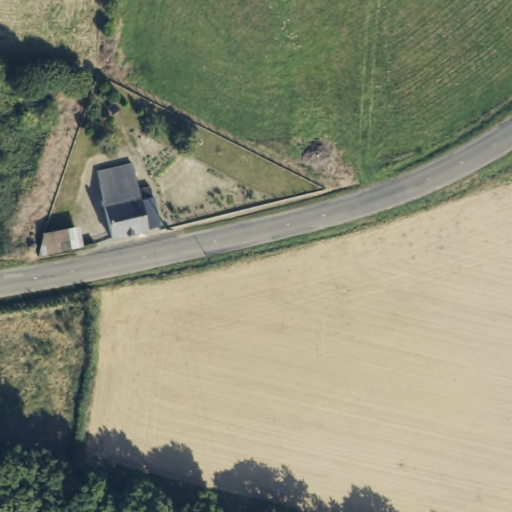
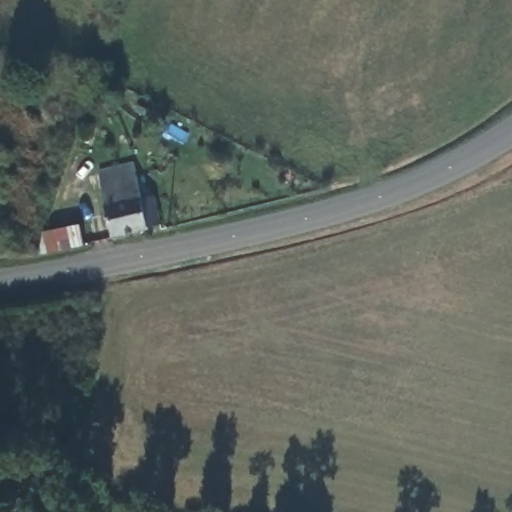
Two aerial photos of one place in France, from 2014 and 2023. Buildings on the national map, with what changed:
unchanged [(159,221),(148,224),(149,228),(112,236),(99,172),(135,165),(142,200),(154,197),(159,221)]
unchanged [(45,235),(47,230),(76,225),(80,246),(49,252),(45,235)]

